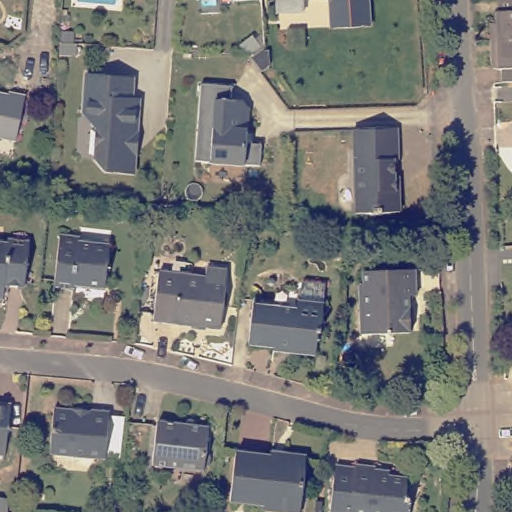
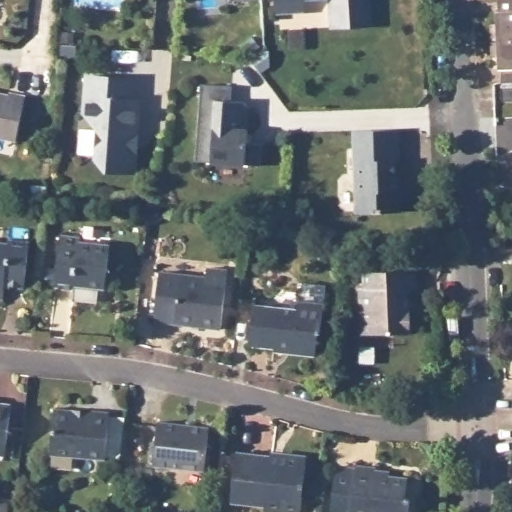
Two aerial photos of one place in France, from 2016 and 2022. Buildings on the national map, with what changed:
unchanged [(231,1),(231,0),(242,0),(231,1)]
unchanged [(369,26),(332,28),(331,1),(304,2),(304,13),(278,14),(277,0),(368,0),(369,26)]
unchanged [(498,3),(498,0),(512,0),(512,31),(495,31),(494,4),(498,3)]
unchanged [(496,60),(495,31),(512,31),(512,72),(502,73),(501,59),(496,60)]
unchanged [(134,78),(132,100),(140,100),(137,133),(132,132),(130,149),(135,154),(133,172),(104,170),(94,158),(97,129),(92,122),(94,97),(85,96),(87,74),(134,78)]
unchanged [(201,85),(234,87),(232,102),(250,103),(247,145),(261,145),(260,166),(195,162),(201,85)]
unchanged [(0,135),(0,91),(10,93),(11,91),(27,94),(17,138),(0,135)]
unchanged [(399,131),(399,163),(395,163),(396,189),(400,189),(400,214),(356,215),(354,132),(399,131)]
unchanged [(21,282),(0,280),(0,241),(3,241),(4,235),(26,237),(21,282)]
unchanged [(72,284),(72,289),(56,286),(62,235),(82,237),(82,243),(111,246),(107,288),(72,284)]
unchanged [(152,267),(201,272),(202,263),(220,265),(213,322),(147,314),(152,267)]
unchanged [(364,330),(360,281),(366,280),(365,268),(418,265),(420,290),(410,291),(413,327),(364,330)]
unchanged [(278,346),(278,349),(250,346),(255,304),(298,309),(300,299),(323,302),(320,332),(317,332),(315,350),(278,346)]
unchanged [(11,402),(5,450),(4,450),(0,450),(0,401),(11,402)]
unchanged [(107,459),(49,452),(53,410),(93,414),(94,411),(112,413),(107,459)]
unchanged [(153,464),(158,421),(211,427),(206,471),(153,464)]
unchanged [(271,512),(263,511),(264,506),(232,502),(238,447),(308,456),(301,512),(271,512)]
unchanged [(366,465),(366,463),(387,465),(387,471),(418,475),(414,503),(421,504),(420,512),(342,512),(347,462),(366,465)]

